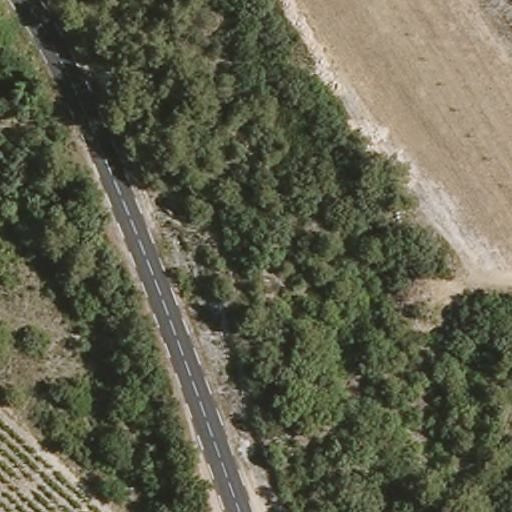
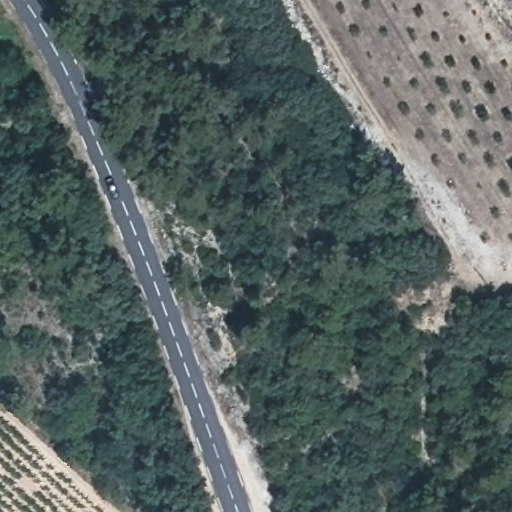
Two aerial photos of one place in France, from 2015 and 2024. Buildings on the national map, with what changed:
[]

